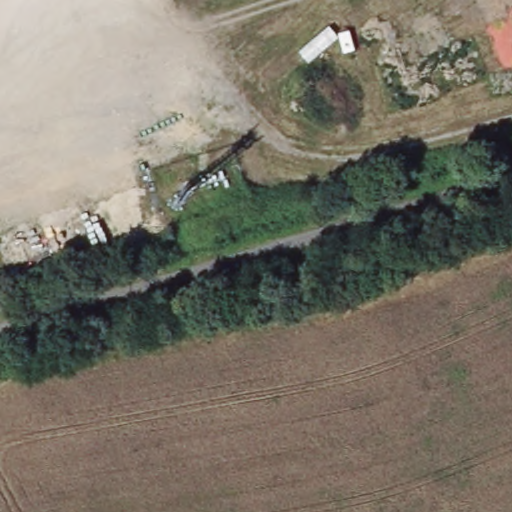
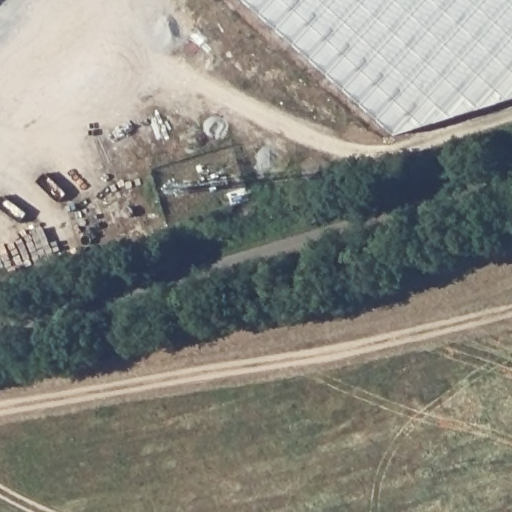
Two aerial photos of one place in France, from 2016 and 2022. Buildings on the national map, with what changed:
new [(396,136),(244,0),(512,0),(512,100),(396,136)]

